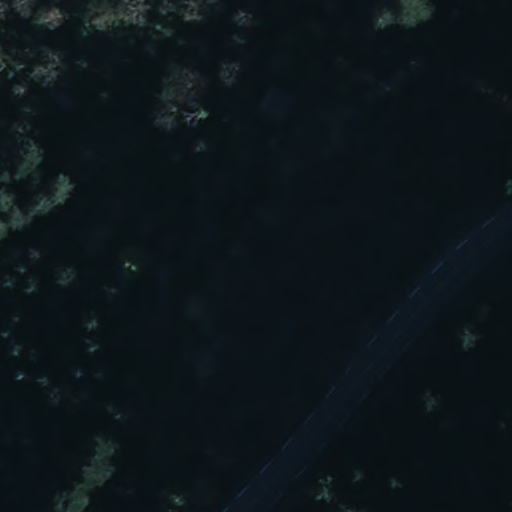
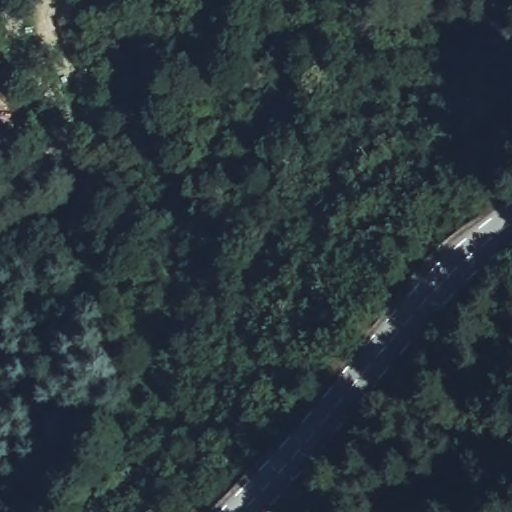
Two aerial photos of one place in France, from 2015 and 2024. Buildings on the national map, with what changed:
unchanged [(272,87),(298,105),(281,136),(254,117),(272,87)]

